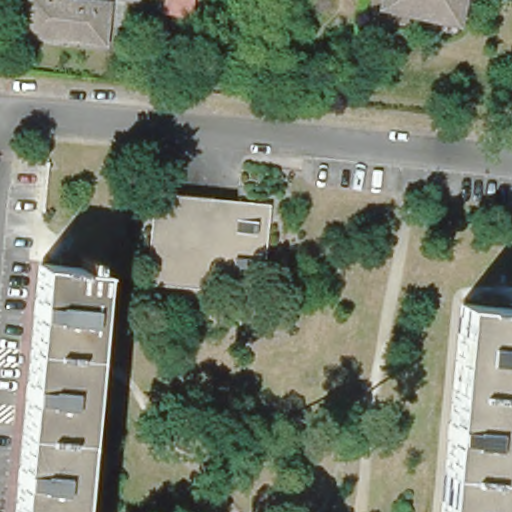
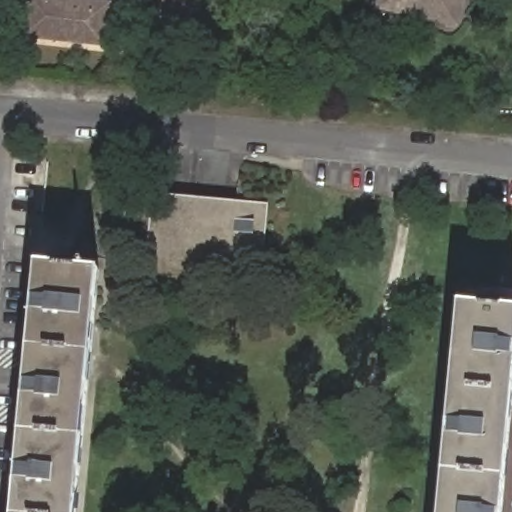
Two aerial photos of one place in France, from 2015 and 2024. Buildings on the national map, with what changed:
unchanged [(104,46),(25,37),(28,0),(73,0),(109,4),(104,46)]
unchanged [(160,13),(161,0),(194,0),(193,16),(160,13)]
unchanged [(389,0),(444,0),(438,26),(397,16),(387,15),(389,4),(389,0)]
unchanged [(438,26),(444,0),(460,0),(457,19),(454,29),(444,26),(438,26)]
unchanged [(150,196),(267,209),(257,298),(140,285),(150,196)]
unchanged [(36,265),(97,271),(75,512),(13,512),(36,265)]
unchanged [(512,306),(512,396),(502,512),(440,512),(460,300),(512,306)]

